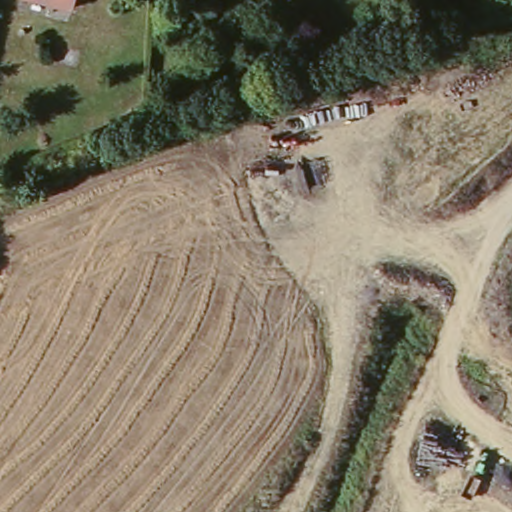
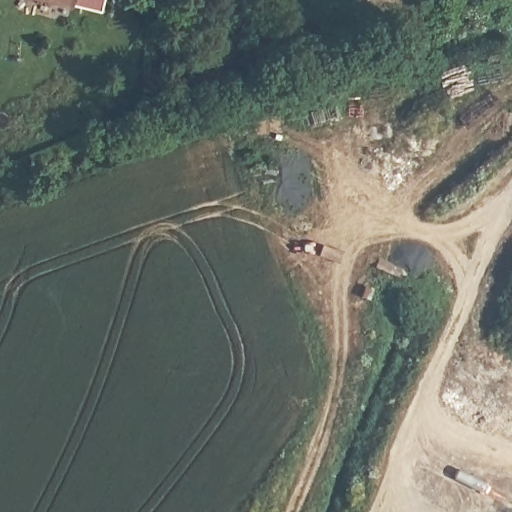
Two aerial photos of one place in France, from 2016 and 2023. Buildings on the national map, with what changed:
unchanged [(62,0),(77,0),(75,5),(62,0)]

